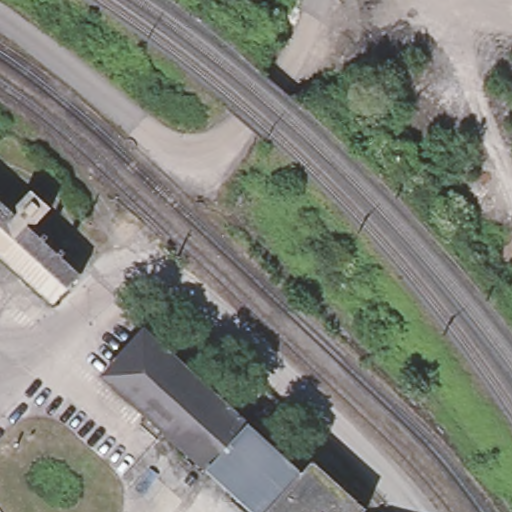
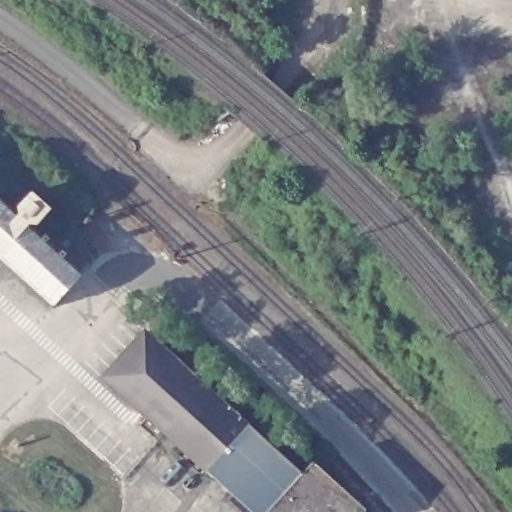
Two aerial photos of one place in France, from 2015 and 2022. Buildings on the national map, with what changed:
unchanged [(33,192),(51,208),(37,223),(27,225),(42,238),(45,235),(68,255),(64,259),(81,274),(54,305),(0,256),(0,200),(19,218),(20,207),(33,192)]
unchanged [(103,379),(143,336),(247,430),(206,474),(103,379)]
unchanged [(247,430),(299,478),(268,512),(248,512),(206,474),(247,430)]
unchanged [(299,478),(311,465),(360,508),(364,512),(268,512),(299,478)]

